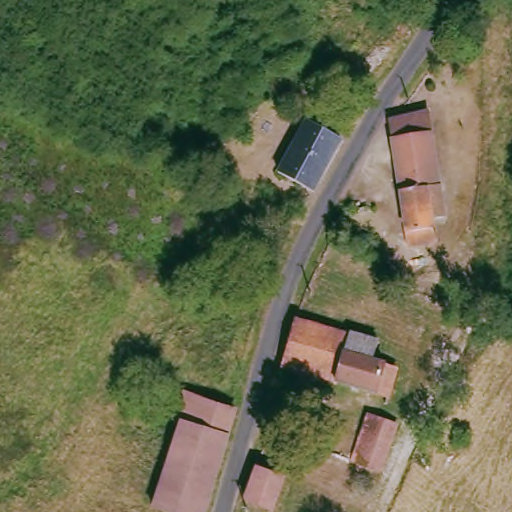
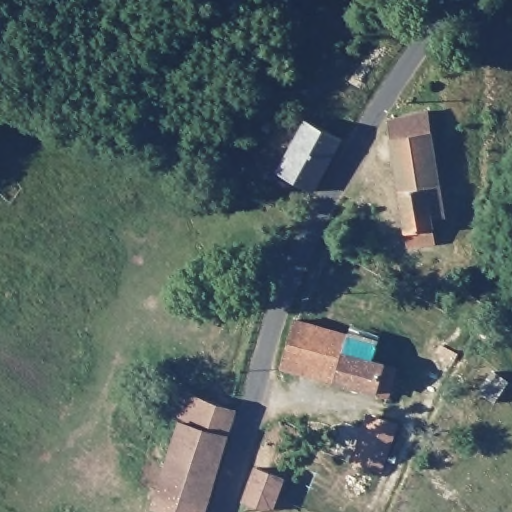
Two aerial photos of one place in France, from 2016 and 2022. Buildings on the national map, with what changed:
unchanged [(270,163),(301,113),(339,137),(303,188),(270,163)]
unchanged [(440,183),(443,214),(429,216),(434,239),(400,242),(387,147),(385,122),(424,117),(428,140),(431,183),(440,183)]
unchanged [(343,335),(346,331),(376,341),(369,358),(397,371),(385,397),(275,366),(288,315),(343,335)]
unchanged [(178,417),(159,413),(167,385),(228,400),(219,426),(178,417)]
unchanged [(348,453),(371,407),(393,420),(369,465),(348,453)]
unchanged [(159,502),(178,417),(219,426),(200,512),(159,502)]
unchanged [(249,462),(284,473),(272,508),(241,500),(249,462)]

